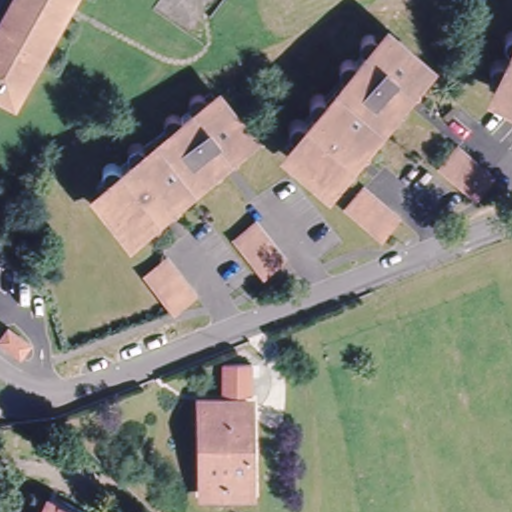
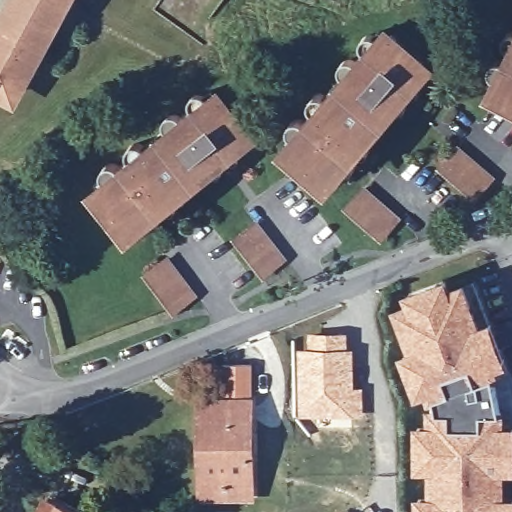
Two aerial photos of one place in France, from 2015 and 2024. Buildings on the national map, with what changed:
unchanged [(0,93),(0,1),(1,0),(66,0),(9,98),(0,93)]
unchanged [(271,149),(377,18),(430,59),(321,187),(271,149)]
unchanged [(483,81),(482,79),(480,75),(479,73),(480,70),(481,68),(483,66),(486,65),(488,64),(491,64),(498,51),(496,50),(495,48),(494,44),(494,42),(495,40),(495,37),(496,36),(498,34),(500,33),(503,33),(507,33),(512,22),(512,105),(479,89),(483,81)]
unchanged [(100,170),(99,167),(98,165),(97,163),(97,161),(98,159),(100,157),(101,155),(103,155),(105,154),(107,153),(110,153),(112,154),(114,155),(116,157),(126,148),(125,146),(124,143),(124,141),(124,138),(126,136),(129,134),(131,133),(134,133),(135,133),(137,134),(140,137),(162,120),(160,117),(160,115),(160,113),(160,110),(162,108),(164,106),(166,105),(169,105),(172,105),(175,106),(176,108),(186,101),(185,99),(185,97),(184,94),(184,92),(187,88),(190,87),(192,86),(195,86),(197,86),(200,87),(201,88),(206,85),(211,92),(215,89),(249,136),(136,227),(94,175),(100,170)]
unchanged [(485,182),(468,201),(436,173),(452,155),(485,182)]
unchanged [(391,223),(375,242),(343,214),(360,196),(391,223)]
unchanged [(251,231),(278,263),(260,277),(235,246),(251,231)]
unchanged [(164,266),(191,298),(172,314),(145,282),(164,266)]
new [(466,280),(482,324),(495,319),(510,363),(493,371),(500,409),(508,409),(507,423),(512,423),(512,471),(507,472),(507,494),(512,494),(512,512),(417,512),(417,496),(429,496),(430,472),(415,472),(415,426),(428,426),(428,409),(436,409),(437,401),(430,405),(426,395),(415,401),(397,358),(408,352),(392,312),(407,305),(402,295),(445,278),(450,287),(466,280)]
new [(305,332),(349,331),(350,347),(355,347),(356,385),(365,386),(365,414),(296,417),(295,348),(305,348),(305,332)]
unchanged [(245,387),(224,387),(224,357),(252,357),(252,371),(252,387),(245,387)]
unchanged [(200,499),(200,491),(197,396),(251,395),(253,491),(253,499),(200,499)]
unchanged [(31,512),(40,493),(80,512),(31,512)]
new [(341,512),(338,512),(338,511),(341,512)]

